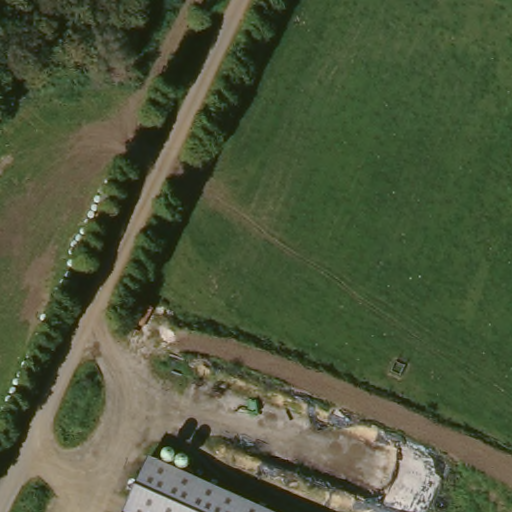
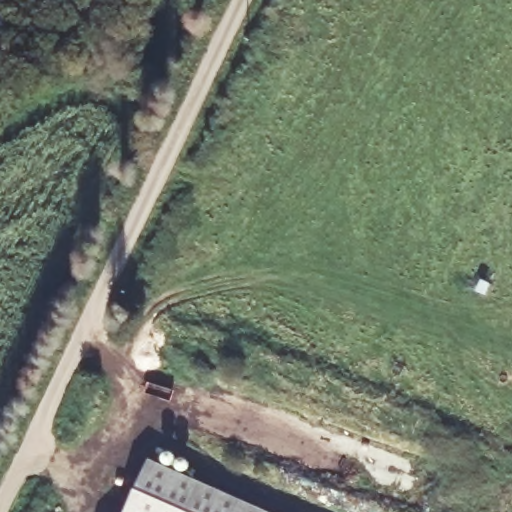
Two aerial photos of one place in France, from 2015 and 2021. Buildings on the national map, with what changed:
unchanged [(125,512),(148,459),(271,512),(125,512)]

